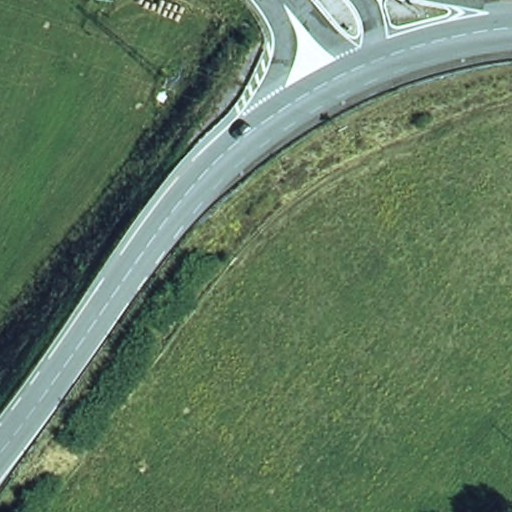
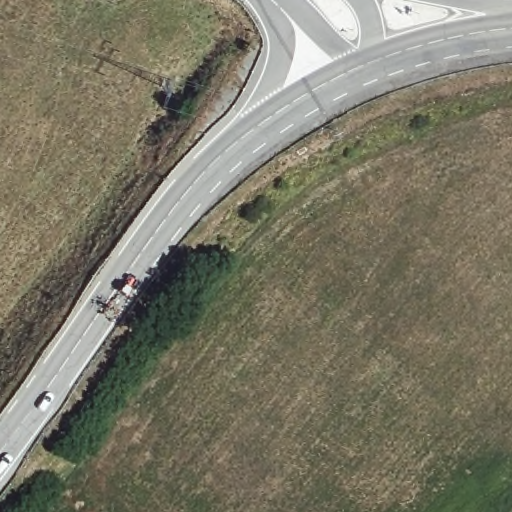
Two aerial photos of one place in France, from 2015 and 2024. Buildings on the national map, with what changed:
[]

